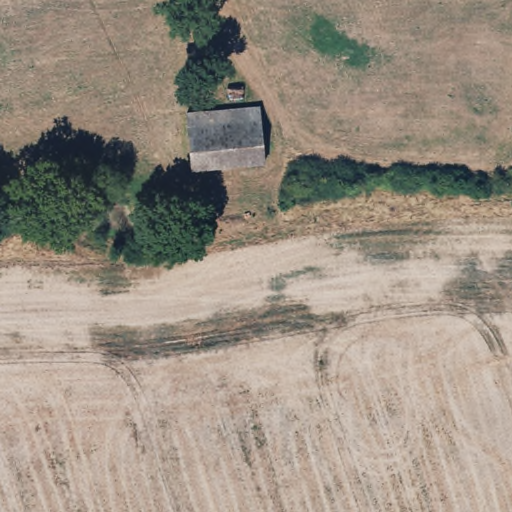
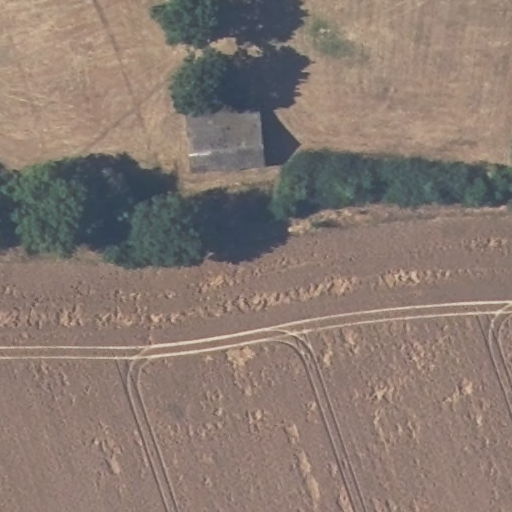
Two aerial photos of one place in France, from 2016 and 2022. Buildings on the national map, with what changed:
unchanged [(260,105),(265,160),(194,165),(189,110),(215,107),(260,105)]

